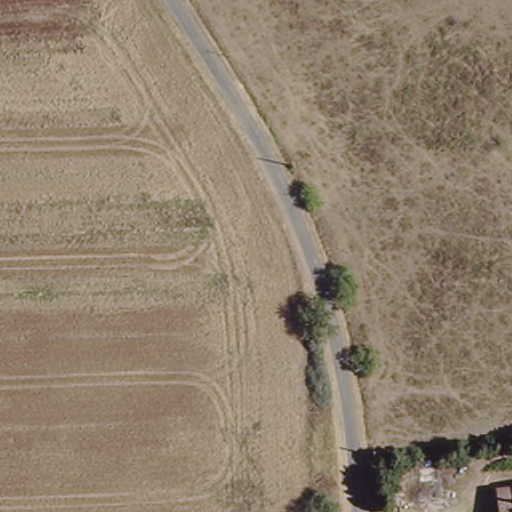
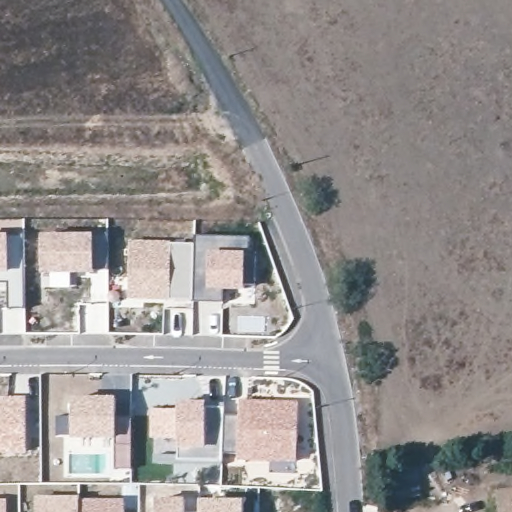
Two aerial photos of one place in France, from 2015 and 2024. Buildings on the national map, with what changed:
new [(94,232),(94,273),(71,274),(43,275),(41,232),(94,232)]
new [(11,234),(10,271),(0,272),(0,234),(11,234)]
new [(10,271),(11,234),(23,236),(24,308),(9,308),(8,283),(0,283),(0,272),(10,271)]
new [(253,237),(254,285),(244,285),(244,291),(223,291),(223,303),(194,301),(195,242),(196,235),(253,237)]
new [(130,239),(195,242),(194,301),(128,300),(130,239)]
new [(15,395),(27,394),(28,453),(0,454),(0,395),(15,395)]
new [(115,469),(115,438),(69,438),(71,395),(117,395),(118,417),(132,419),(132,469),(115,469)]
new [(239,398),(300,398),(297,463),(236,461),(239,398)]
new [(177,408),(177,402),(207,401),(207,445),(223,445),(221,470),(218,470),(217,464),(177,463),(176,439),(152,439),(150,439),(149,408),(177,408)]
new [(226,415),(238,415),(236,452),(222,452),(223,445),(207,445),(207,402),(224,403),(226,415)]
unchanged [(512,484),(512,512),(501,512),(497,486),(512,484)]
new [(81,494),(81,498),(80,512),(35,512),(35,495),(81,494)]
new [(8,512),(0,512),(0,497),(8,496),(8,512)]
new [(125,497),(125,512),(80,512),(81,498),(125,497)]
new [(187,497),(187,512),(153,512),(153,497),(187,497)]
new [(244,512),(198,512),(198,499),(244,498),(244,512)]

